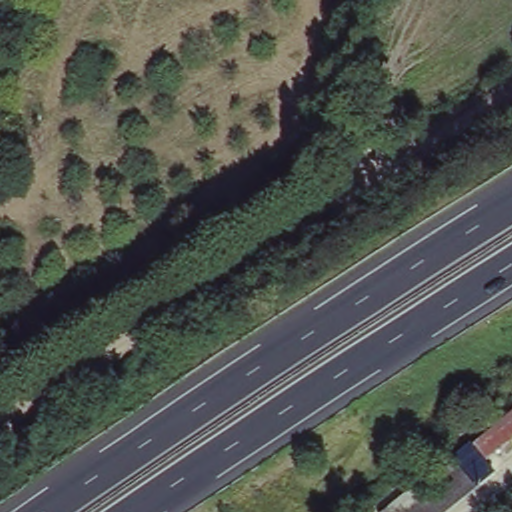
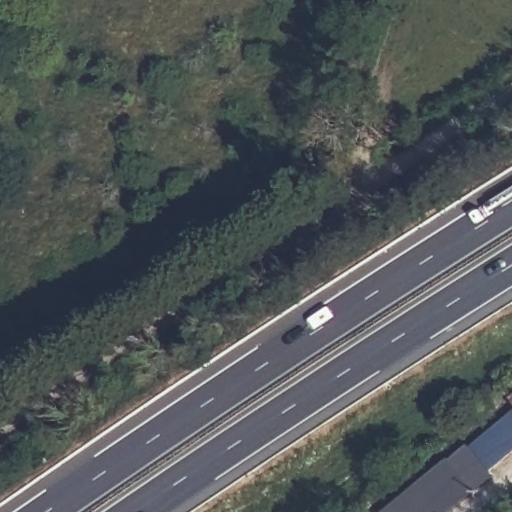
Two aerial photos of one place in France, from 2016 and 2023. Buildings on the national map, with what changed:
unchanged [(505,392),(512,386),(512,401),(505,392)]
unchanged [(443,512),(375,512),(443,457),(460,442),(465,448),(512,410),(512,439),(479,465),(462,480),(470,490),(443,512)]

